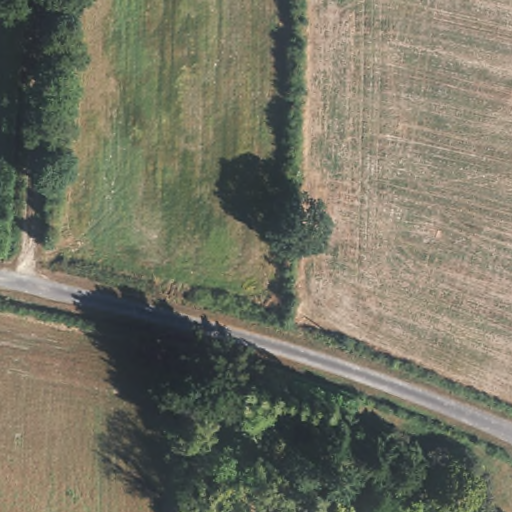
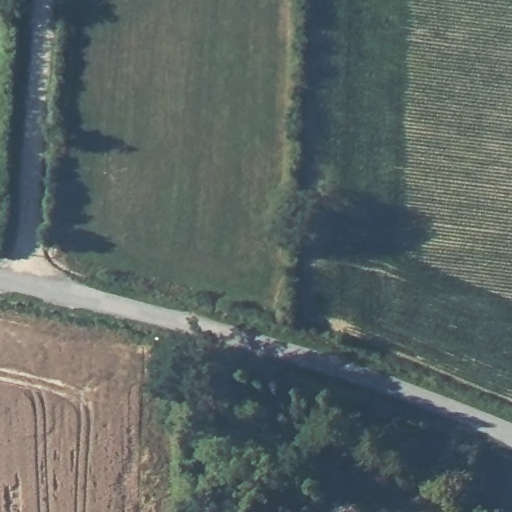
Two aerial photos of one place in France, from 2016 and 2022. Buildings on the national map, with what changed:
[]

